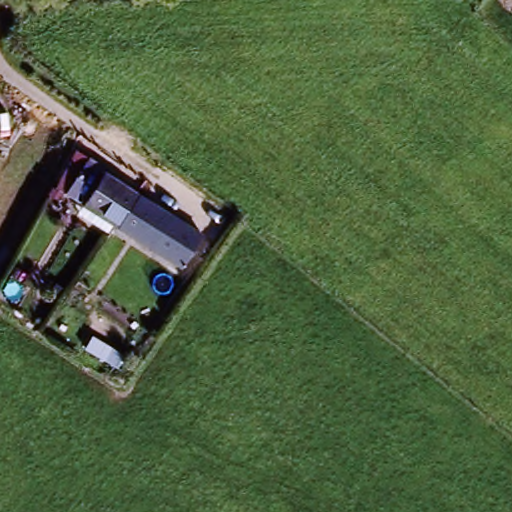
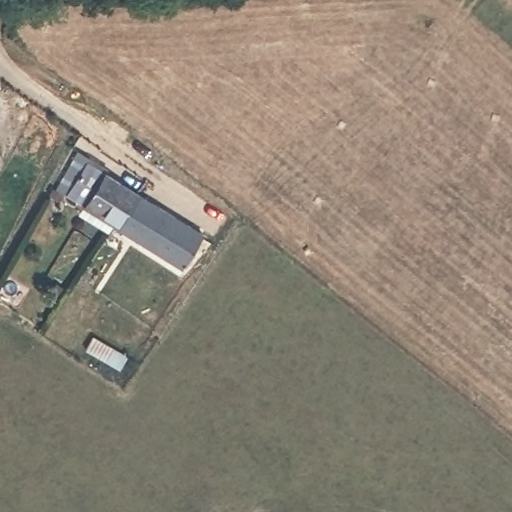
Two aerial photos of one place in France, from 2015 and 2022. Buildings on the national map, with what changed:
unchanged [(72,144),(90,154),(85,161),(130,190),(109,223),(50,189),(72,144)]
unchanged [(199,234),(179,267),(109,223),(130,190),(199,234)]

